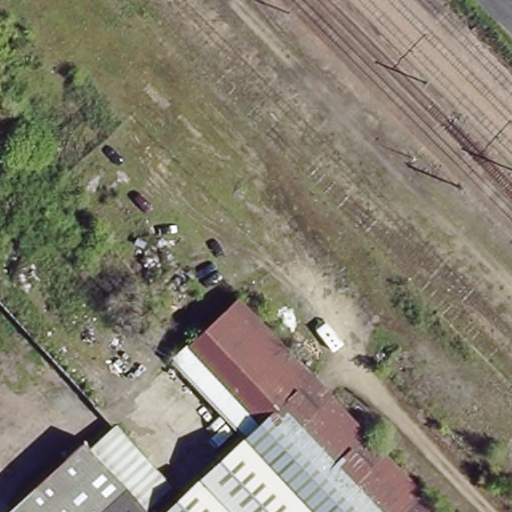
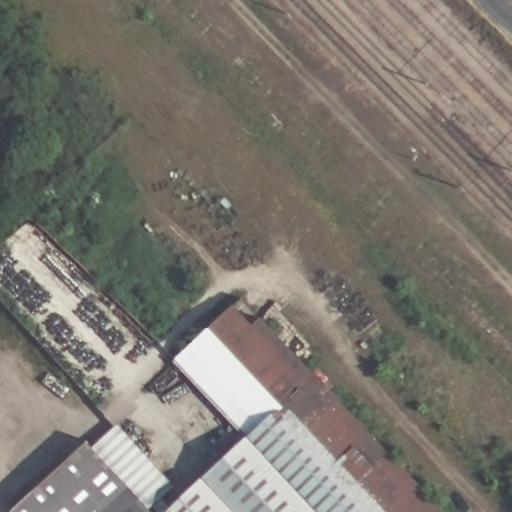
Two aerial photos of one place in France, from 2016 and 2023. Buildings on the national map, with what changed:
unchanged [(89,439),(95,450),(116,424),(186,491),(248,440),(177,361),(240,298),(442,512),(10,512),(89,439)]

